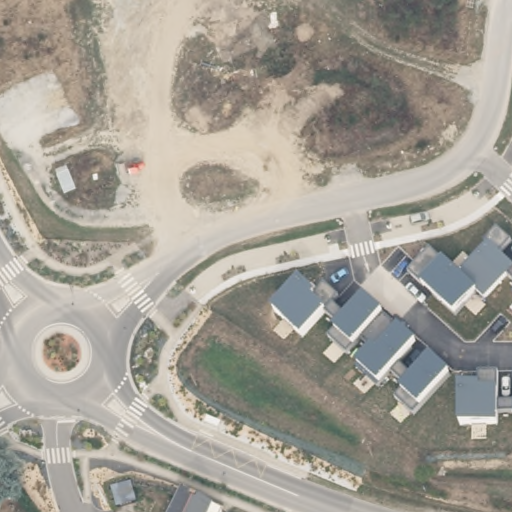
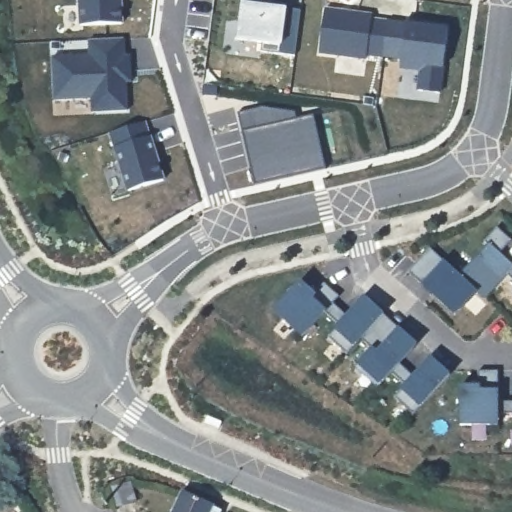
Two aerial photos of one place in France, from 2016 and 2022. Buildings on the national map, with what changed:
new [(79,25),(78,0),(122,0),(123,24),(79,25)]
new [(273,0),(271,5),(289,6),(301,9),(295,55),(262,50),(263,43),(236,40),(242,1),(242,0),(273,0)]
new [(323,9),(372,15),(371,19),(387,21),(383,56),(365,54),(364,58),(318,52),(323,9)]
new [(400,65),(400,60),(383,56),(387,21),(405,24),(406,21),(449,27),(444,67),(441,94),(417,90),(419,71),(400,70),(400,65)]
new [(126,81),(127,110),(92,112),(91,98),(54,100),(53,56),(89,55),(89,40),(124,38),(125,55),(130,55),(131,73),(131,81),(126,81)]
new [(262,106),(295,110),(297,116),(313,114),(327,167),(255,184),(241,130),(237,112),(262,106)]
new [(144,122),(149,137),(150,136),(163,180),(128,190),(110,132),(144,122)]
unchanged [(487,298),(478,290),(456,312),(424,281),(446,260),(463,277),(489,245),(512,263),(512,275),(508,272),(487,298)]
unchanged [(303,335),(275,310),(301,280),(315,292),(312,298),(325,310),(303,335)]
unchanged [(380,386),(359,363),(369,350),(375,355),(384,343),(369,330),(353,345),(337,332),(367,297),(417,344),(380,386)]
unchanged [(420,405),(402,390),(432,357),(450,373),(420,405)]
unchanged [(499,425),(460,425),(459,388),(497,388),(498,404),(512,403),(512,412),(498,412),(499,425)]
unchanged [(221,512),(171,512),(181,491),(185,493),(222,510),(221,512)]

